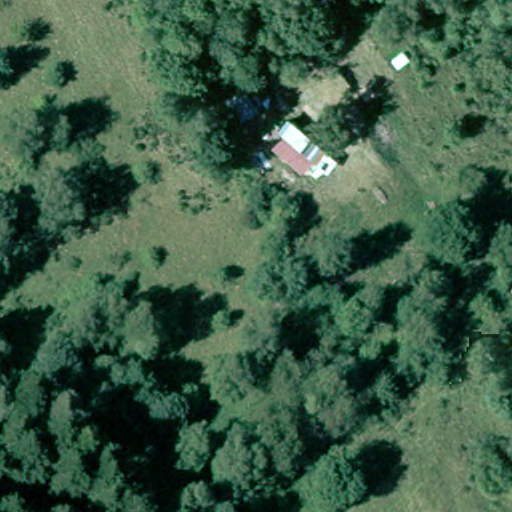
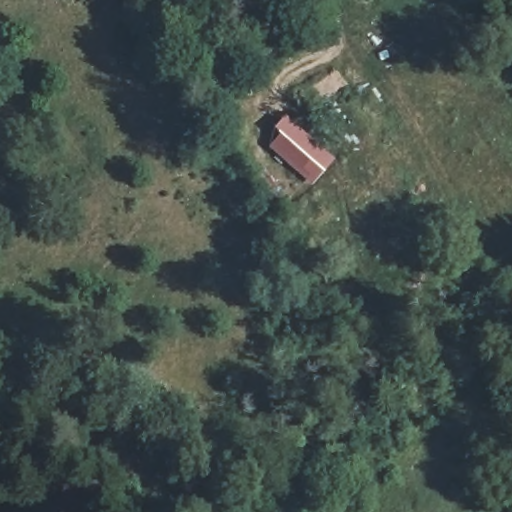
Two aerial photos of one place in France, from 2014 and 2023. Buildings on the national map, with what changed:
new [(336,158),(314,183),(269,146),(283,132),(277,128),(287,114),(336,158)]

